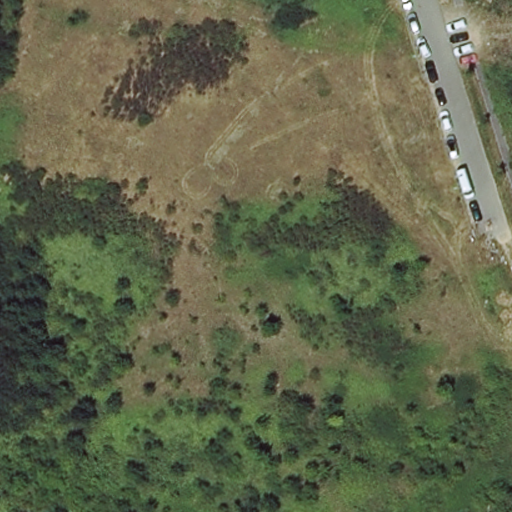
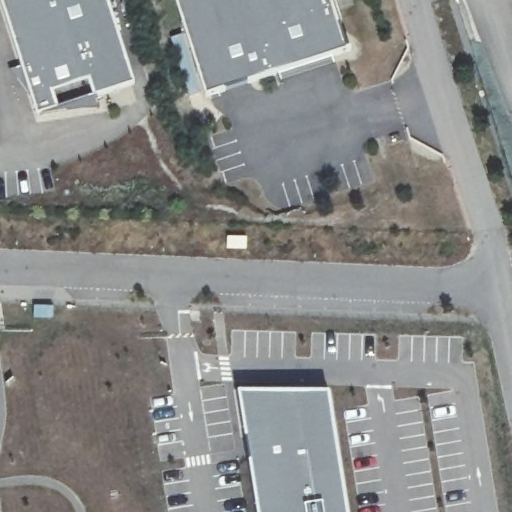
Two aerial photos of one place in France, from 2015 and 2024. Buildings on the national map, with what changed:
new [(148,105),(110,117),(114,129),(50,136),(43,109),(24,90),(34,85),(13,14),(32,6),(30,0),(114,0),(148,105)]
new [(360,71),(340,78),(343,85),(289,102),(287,94),(219,117),(181,0),(337,0),(360,71)]
new [(339,512),(251,512),(229,384),(323,389),(339,512)]

